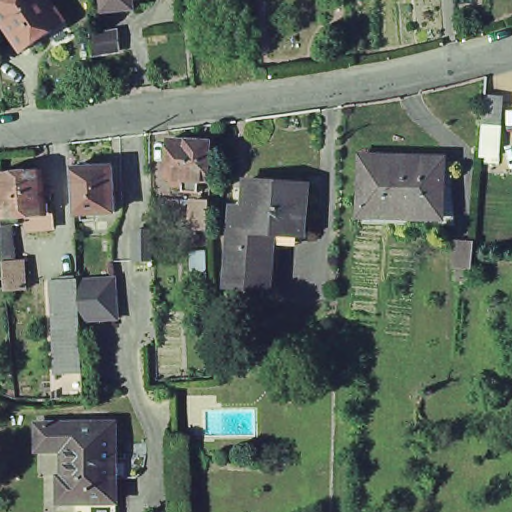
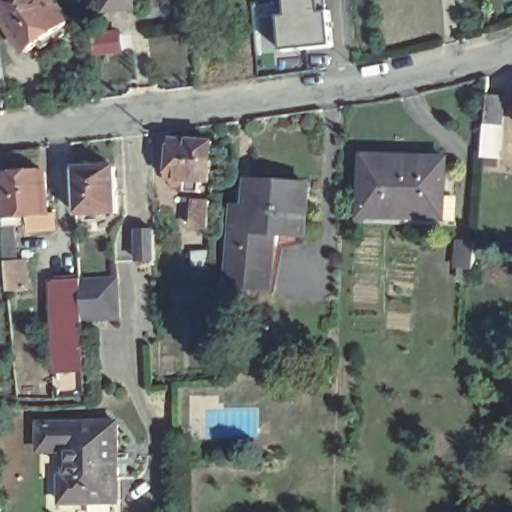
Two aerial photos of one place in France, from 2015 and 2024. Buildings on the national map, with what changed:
unchanged [(0,21),(0,17),(23,0),(47,0),(67,29),(26,57),(0,21)]
unchanged [(105,6),(105,0),(131,0),(131,5),(105,6)]
new [(286,15),(285,0),(318,0),(319,12),(327,11),(328,20),(323,21),(324,29),(329,29),(330,45),(281,50),(278,15),(286,15)]
unchanged [(115,12),(116,27),(91,29),(90,15),(115,12)]
unchanged [(97,55),(96,30),(121,27),(123,52),(97,55)]
unchanged [(485,154),(488,122),(490,94),(507,96),(506,125),(503,155),(485,154)]
unchanged [(184,191),(184,186),(173,185),(173,179),(168,178),(171,140),(188,141),(188,140),(213,141),(210,181),(201,180),(199,192),(184,191)]
unchanged [(359,220),(361,157),(388,158),(388,161),(418,162),(418,160),(444,161),(442,222),(359,220)]
unchanged [(84,170),(83,168),(91,163),(99,162),(99,169),(119,168),(121,213),(81,215),(79,170),(84,170)]
unchanged [(7,220),(6,213),(3,171),(45,167),(49,209),(21,212),(21,219),(7,220)]
unchanged [(275,288),(233,285),(237,221),(238,206),(239,179),(252,180),(303,183),(312,184),(309,234),(303,234),(279,233),(275,288)]
unchanged [(193,227),(195,200),(211,200),(211,208),(209,229),(193,227)]
unchanged [(138,257),(137,226),(154,226),(155,256),(138,257)]
unchanged [(457,271),(457,261),(459,235),(474,236),(472,262),(470,272),(457,271)]
unchanged [(208,276),(191,276),(190,250),(207,250),(208,276)]
unchanged [(24,255),(27,285),(8,286),(5,256),(24,255)]
unchanged [(58,378),(53,280),(56,280),(80,278),(81,281),(116,280),(117,298),(118,317),(83,319),(82,300),(84,349),(86,375),(87,397),(65,398),(60,398),(58,378)]
unchanged [(118,502),(75,503),(63,504),(62,477),(67,477),(66,450),(61,450),(41,450),(40,425),(60,425),(68,424),(118,423),(118,502)]

